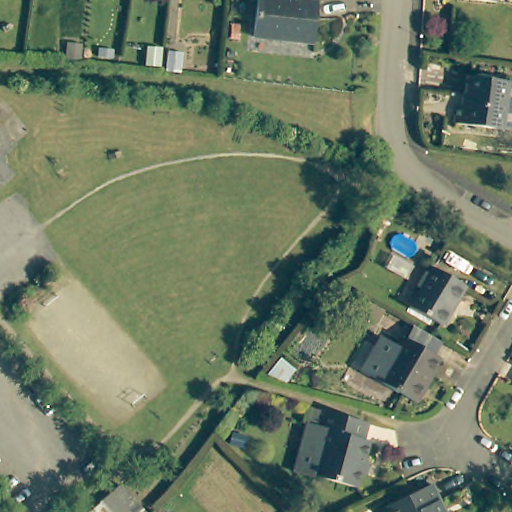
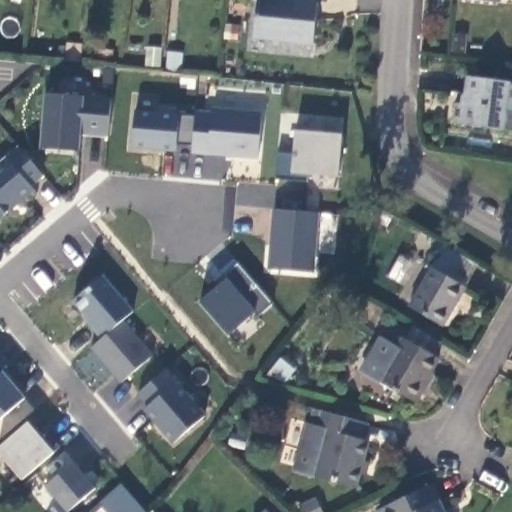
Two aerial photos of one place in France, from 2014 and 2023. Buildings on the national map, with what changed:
unchanged [(256,36),(259,0),(319,0),(315,41),(256,36)]
unchanged [(512,115),(510,125),(446,116),(449,97),(457,99),(460,71),(512,78),(512,115)]
new [(85,95),(111,98),(108,136),(81,134),(80,153),(41,149),(47,92),(85,95)]
new [(138,110),(181,114),(196,115),(196,110),(212,111),(212,109),(261,114),(258,160),(193,153),(194,145),(176,144),(176,155),(135,150),(138,110)]
demolished [(14,140),(2,150),(7,156),(4,159),(13,170),(0,182),(0,122),(14,140)]
new [(279,152),(293,154),(296,131),(342,135),(338,176),(309,174),(309,184),(277,181),(279,152)]
new [(19,147),(46,176),(33,188),(36,192),(2,222),(0,220),(0,163),(19,147)]
new [(274,208),(322,211),(316,273),(269,270),(274,208)]
new [(225,276),(239,265),(273,303),(259,316),(254,311),(228,335),(200,300),(225,276)]
unchanged [(467,285),(457,305),(452,302),(440,324),(411,308),(435,267),(467,285)]
new [(105,336),(74,300),(104,275),(134,311),(124,318),(155,355),(124,385),(92,349),(105,336)]
unchanged [(442,358),(446,360),(431,385),(434,387),(424,405),(369,375),(389,340),(406,350),(410,342),(414,341),(421,327),(450,344),(442,358)]
new [(174,443),(143,410),(147,407),(137,397),(167,368),(207,415),(174,443)]
new [(4,371),(25,397),(0,420),(0,374),(4,371)]
unchanged [(302,467),(299,462),(309,427),(311,419),(314,420),(318,405),(328,408),(372,420),(367,437),(372,438),(359,484),(319,472),(302,467)]
new [(30,421),(45,438),(50,433),(62,447),(26,482),(0,452),(0,448),(30,421)]
new [(72,460),(96,487),(72,512),(68,512),(46,486),(72,460)]
unchanged [(144,511),(143,512),(111,512),(103,502),(123,485),(144,511)]
unchanged [(436,485),(443,500),(438,502),(443,512),(381,512),(436,485)]

